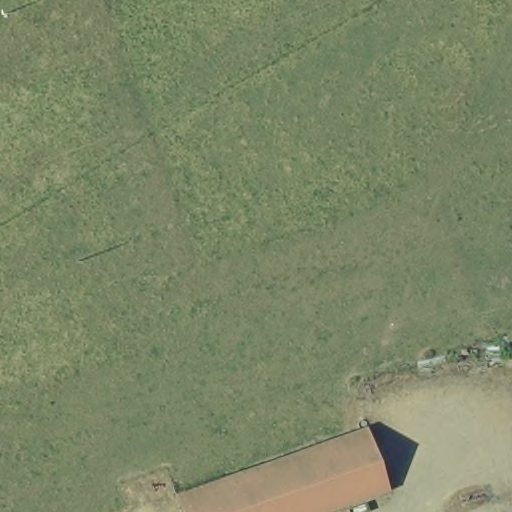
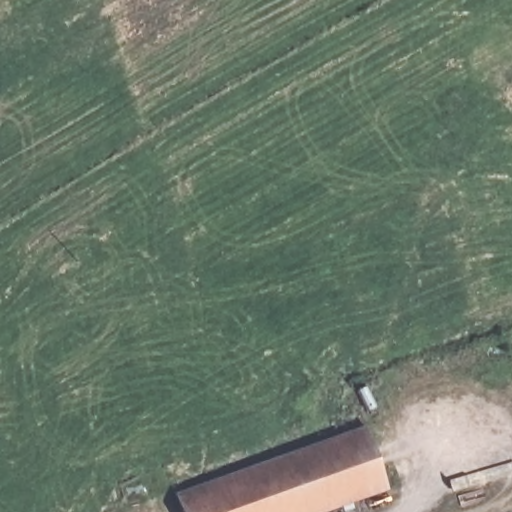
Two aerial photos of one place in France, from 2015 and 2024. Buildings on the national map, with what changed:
unchanged [(342,440),(367,431),(368,435),(378,462),(389,490),(390,491),(355,505),(337,512),(180,512),(177,503),(342,440)]

